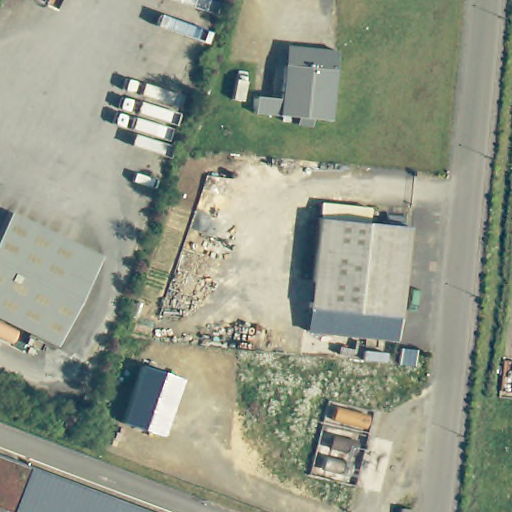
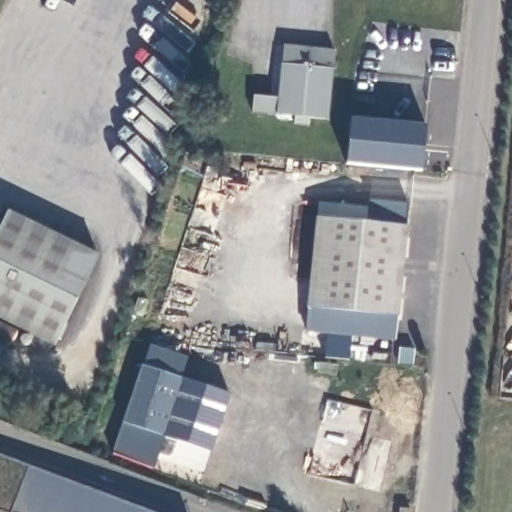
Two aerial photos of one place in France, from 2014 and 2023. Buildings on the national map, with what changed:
unchanged [(284,124),(285,116),(242,112),(244,96),(268,97),(271,64),(278,64),(280,45),(324,49),(318,119),(301,117),(300,125),(284,124)]
new [(423,170),(347,163),(352,117),(427,124),(423,170)]
unchanged [(26,219),(105,255),(62,346),(0,317),(0,244),(15,213),(26,219)]
unchanged [(311,214),(400,222),(389,336),(345,332),(347,308),(302,305),(311,214)]
unchanged [(300,327),(302,305),(347,308),(345,332),(300,327)]
unchanged [(392,360),(393,345),(408,345),(407,361),(392,360)]
unchanged [(112,450),(132,365),(172,377),(148,457),(112,450)]
unchanged [(0,509),(0,452),(159,512),(9,512),(0,509)]
unchanged [(392,505),(404,505),(403,512),(392,512),(392,505)]

